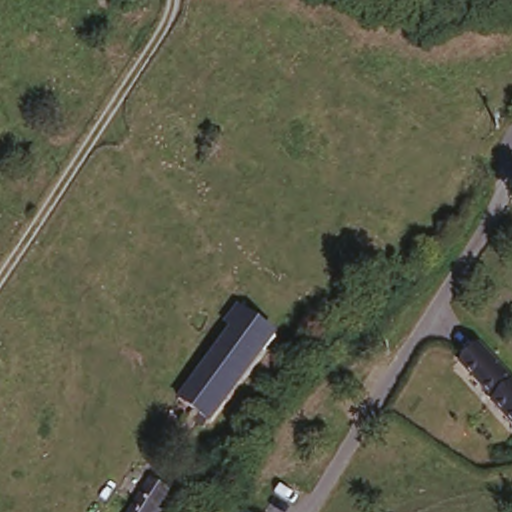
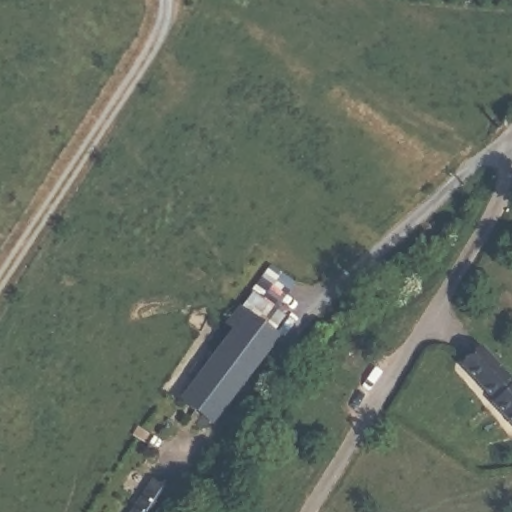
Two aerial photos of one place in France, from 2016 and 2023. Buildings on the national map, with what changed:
unchanged [(199,431),(185,419),(193,408),(181,399),(236,333),(223,324),(239,304),(278,338),(199,431)]
unchanged [(512,432),(460,373),(487,350),(512,377),(512,432)]
unchanged [(160,508),(165,512),(133,512),(152,484),(169,495),(160,508)]

